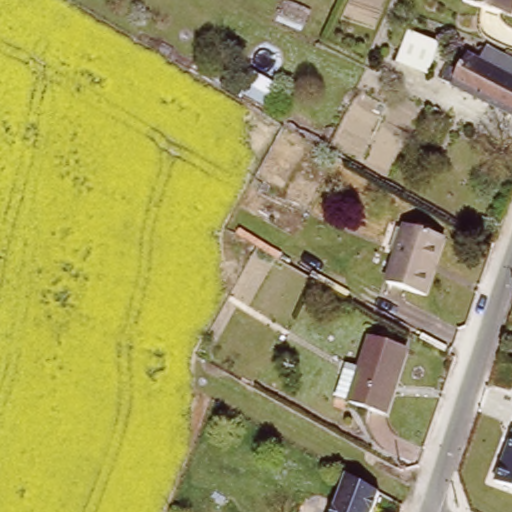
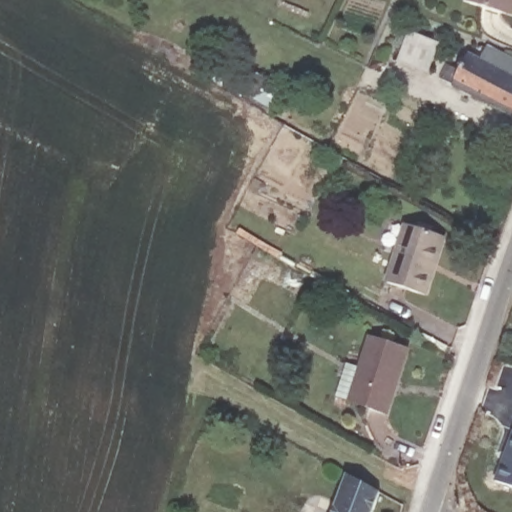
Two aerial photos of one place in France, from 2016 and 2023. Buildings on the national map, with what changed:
unchanged [(465,5),(467,0),(512,0),(512,7),(509,17),(465,5)]
unchanged [(428,74),(396,61),(408,30),(440,43),(428,74)]
unchanged [(449,64),(462,69),(468,57),(512,81),(512,118),(441,81),(449,64)]
unchanged [(243,95),(251,71),(274,85),(268,109),(243,95)]
unchanged [(412,299),(381,281),(414,223),(452,245),(438,269),(418,302),(412,299)]
unchanged [(409,357),(390,418),(349,406),(368,345),(409,357)]
unchanged [(512,489),(492,482),(512,428),(512,489)]
unchanged [(346,475),(379,495),(372,512),(332,512),(346,475)]

